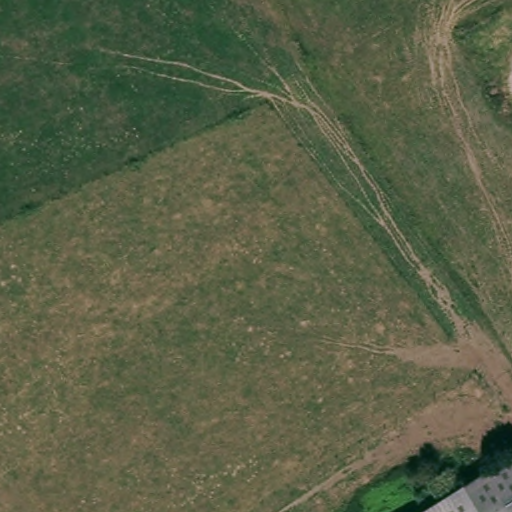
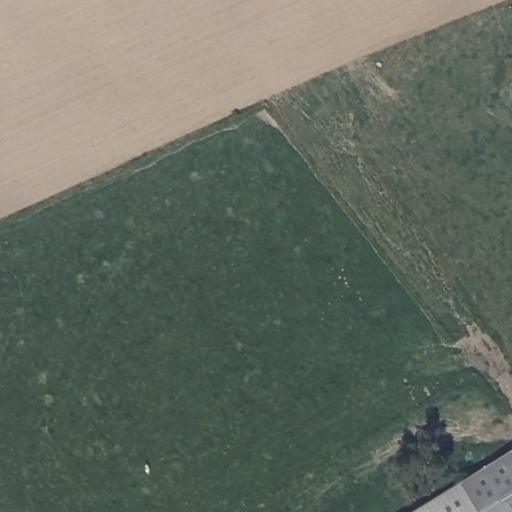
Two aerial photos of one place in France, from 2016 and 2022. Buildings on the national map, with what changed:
unchanged [(512,452),(512,512),(490,512),(471,478),(512,452)]
unchanged [(415,512),(471,478),(490,512),(415,512)]

